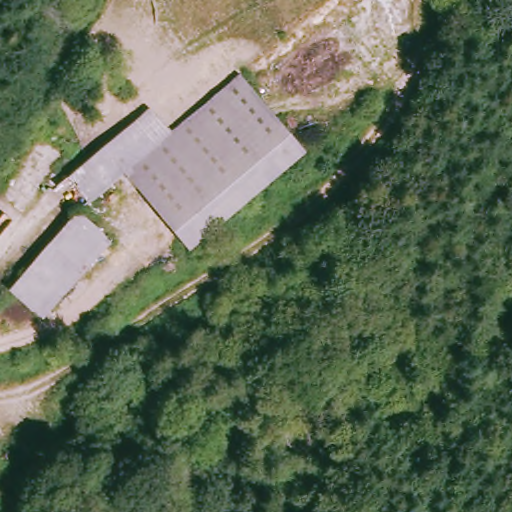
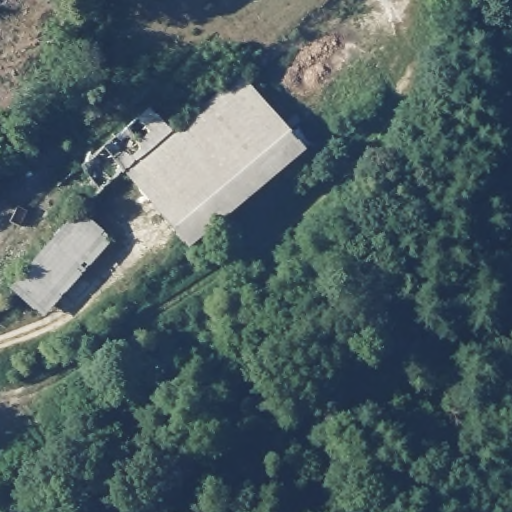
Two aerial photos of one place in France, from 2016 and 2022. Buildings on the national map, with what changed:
unchanged [(128,176),(82,217),(115,247),(45,327),(11,295),(78,220),(55,194),(150,111),(175,135),(241,79),(309,161),(191,262),(128,176)]

